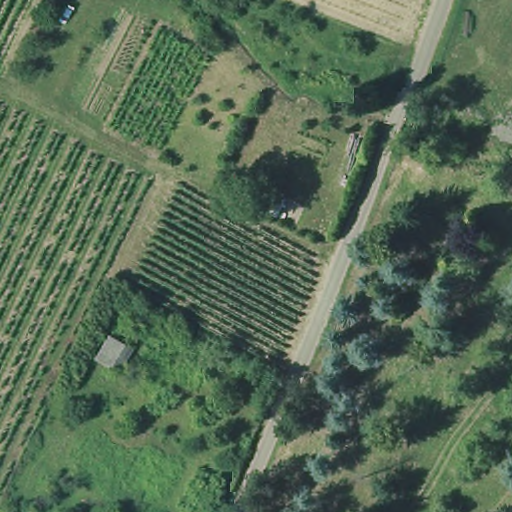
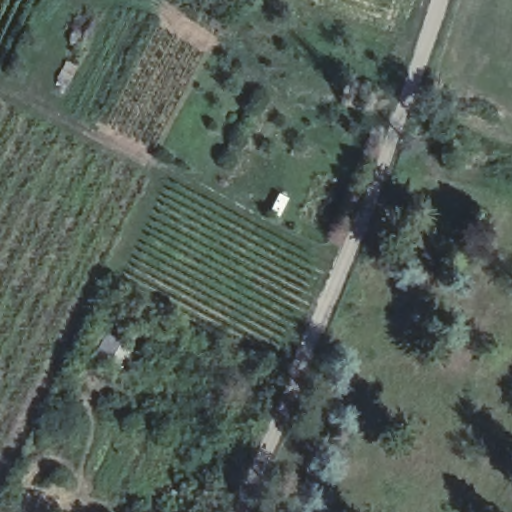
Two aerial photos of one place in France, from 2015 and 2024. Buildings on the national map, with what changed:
unchanged [(113,375),(96,365),(109,342),(127,353),(113,375)]

